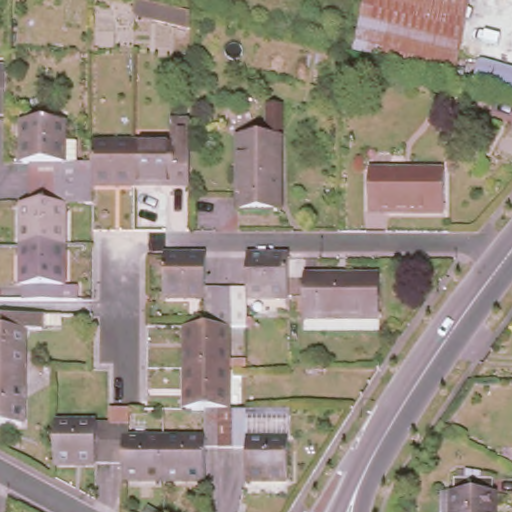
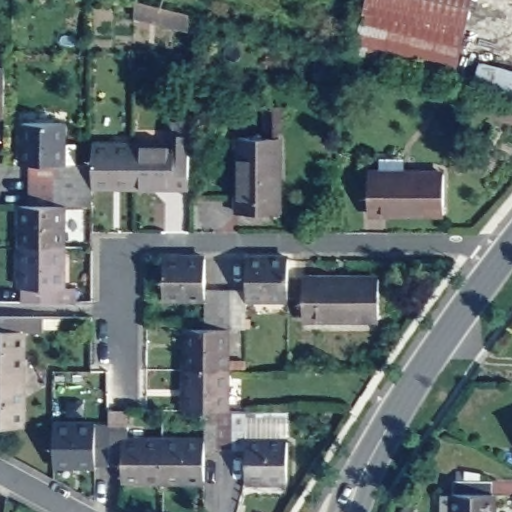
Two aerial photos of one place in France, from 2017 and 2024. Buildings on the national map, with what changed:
unchanged [(190,10),(190,27),(135,13),(134,0),(150,0),(190,10)]
unchanged [(365,1),(365,0),(472,0),(467,28),(454,74),(360,51),(365,1)]
unchanged [(482,63),(512,71),(512,92),(477,82),(482,63)]
unchanged [(238,196),(239,134),(265,134),(266,104),(283,104),(283,127),(278,127),(278,134),(280,134),(279,196),(279,211),(238,210),(238,196)]
unchanged [(63,243),(22,243),(22,202),(31,201),(31,188),(32,175),(32,161),(23,161),(23,120),(63,119),(63,140),(77,140),(78,161),(93,161),(93,143),(135,143),(135,183),(94,183),(94,189),(94,201),(63,201),(63,243)]
unchanged [(175,142),(175,120),(190,120),(190,142),(190,183),(135,183),(135,143),(175,142)]
unchanged [(446,210),(383,209),(370,209),(370,170),(383,170),(445,170),(446,210)]
unchanged [(63,285),(80,285),(80,299),(22,299),(22,243),(63,243),(63,285)]
unchanged [(188,326),(207,326),(207,295),(165,295),(165,255),(207,255),(207,287),(219,288),(232,288),(248,288),(248,256),(288,256),(288,295),(248,296),(248,327),(232,326),(229,326),(229,367),(188,366),(188,326)]
unchanged [(310,271),(324,271),(385,271),(385,312),(324,312),(310,312),(310,271)]
unchanged [(42,329),(23,329),(23,370),(23,382),(24,425),(0,425),(0,315),(43,315),(42,329)]
unchanged [(207,409),(189,409),(188,366),(229,367),(229,409),(234,409),(289,410),(288,479),(248,479),(248,448),(234,448),(222,448),(207,448),(207,478),(165,479),(165,438),(207,438),(207,409)]
unchanged [(111,465),(97,465),(54,466),(55,426),(97,426),(111,426),(111,409),(130,409),(130,439),(165,438),(165,479),(124,479),(124,465),(111,465)]
unchanged [(455,476),(493,477),(493,490),(493,512),(456,512),(455,490),(455,476)]

